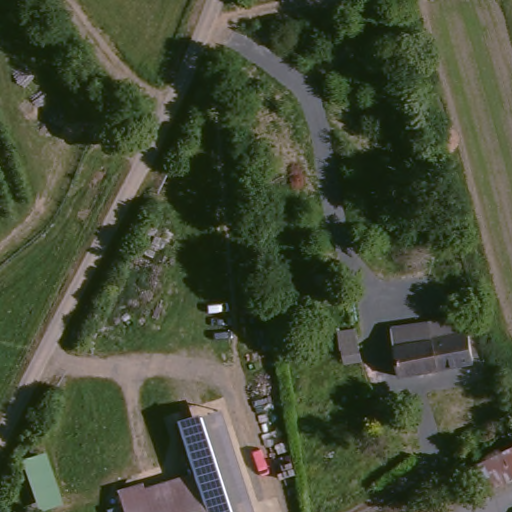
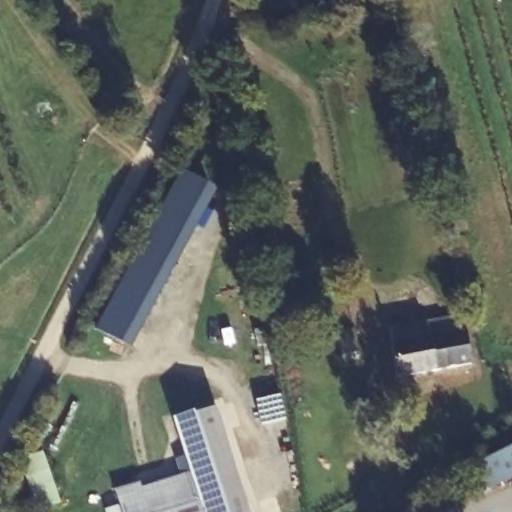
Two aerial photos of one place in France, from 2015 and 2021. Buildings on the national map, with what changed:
new [(219,190),(133,350),(98,329),(182,171),(219,190)]
unchanged [(475,359),(402,373),(392,318),(402,316),(460,308),(469,327),(475,359)]
unchanged [(365,367),(350,369),(346,345),(362,343),(365,367)]
unchanged [(192,477),(177,422),(219,410),(232,458),(234,466),(233,466),(192,477)]
unchanged [(512,475),(492,485),(478,463),(512,446),(512,475)]
new [(19,459),(45,451),(62,504),(36,511),(19,459)]
unchanged [(192,477),(233,466),(234,466),(246,512),(121,512),(117,497),(192,477)]

